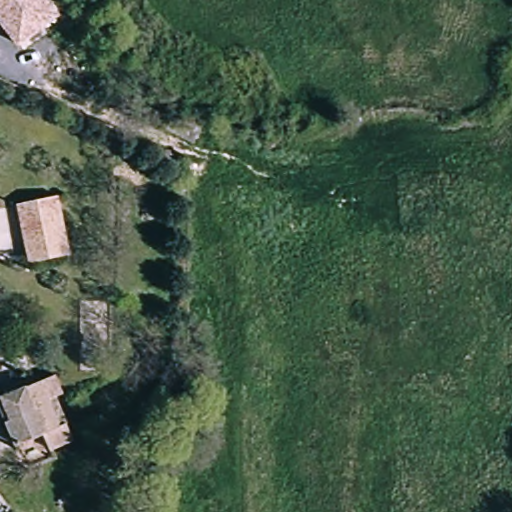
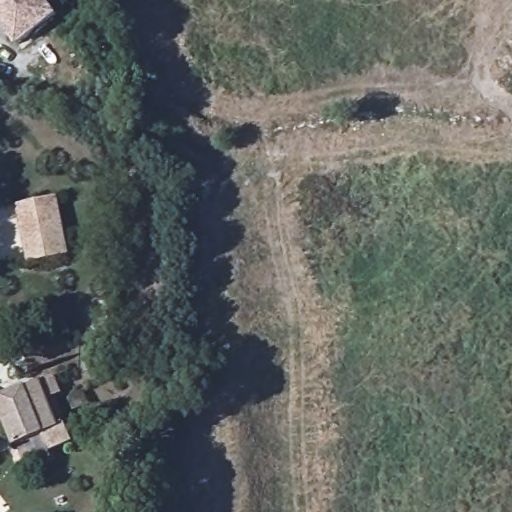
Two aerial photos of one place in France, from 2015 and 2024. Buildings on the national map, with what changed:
unchanged [(0,22),(0,0),(49,0),(59,13),(18,46),(0,22)]
unchanged [(62,193),(72,255),(28,264),(17,203),(62,193)]
unchanged [(38,398),(53,394),(64,429),(20,443),(3,394),(35,384),(38,398)]

